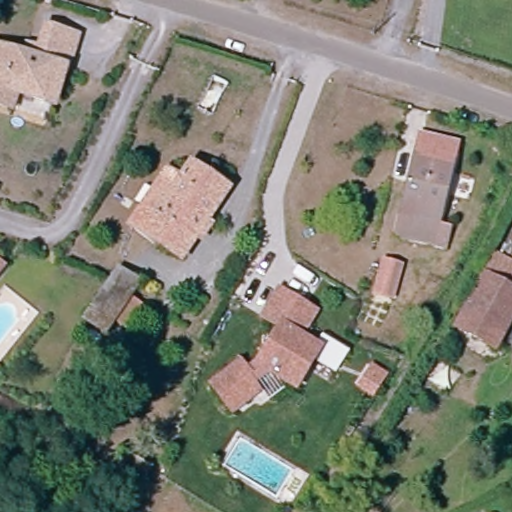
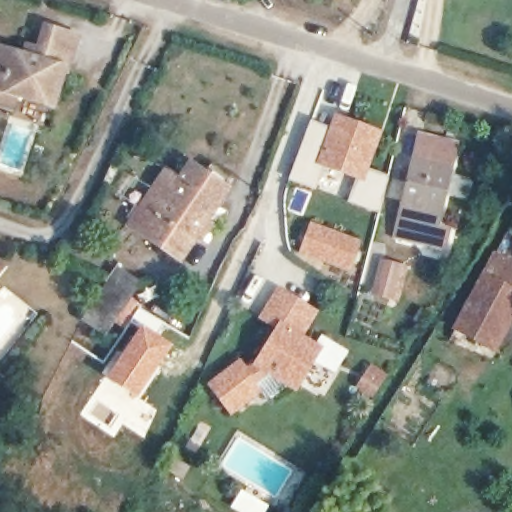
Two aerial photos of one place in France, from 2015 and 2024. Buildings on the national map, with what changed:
unchanged [(24,51),(27,42),(38,45),(41,37),(45,22),(75,31),(71,46),(65,65),(60,64),(49,100),(14,89),(9,104),(0,101),(0,44),(24,51)]
new [(329,127),(335,112),(384,131),(370,169),(389,175),(381,214),(350,202),(359,180),(325,166),(317,190),(291,180),(313,121),(329,127)]
unchanged [(390,245),(412,158),(415,145),(452,155),(449,167),(427,254),(390,245)]
unchanged [(175,261),(123,225),(175,151),(226,187),(175,261)]
new [(362,241),(350,273),(299,255),(311,221),(362,241)]
unchanged [(391,266),(382,295),(367,290),(376,261),(391,266)]
unchanged [(101,333),(81,319),(115,270),(136,283),(101,333)]
unchanged [(487,342),(461,328),(486,283),(512,297),(487,342)]
unchanged [(297,334),(316,344),(320,335),(343,346),(336,358),(333,365),(316,355),(313,353),(308,363),(297,384),(291,380),(280,390),(266,401),(259,390),(229,410),(213,385),(212,382),(230,370),(240,362),(246,372),(259,363),(277,328),(278,326),(261,317),(275,290),(292,300),(310,308),(297,334)]
new [(137,331),(129,325),(139,310),(163,325),(156,335),(173,346),(137,400),(107,380),(137,331)]
unchanged [(151,480),(120,461),(130,447),(160,466),(151,480)]

